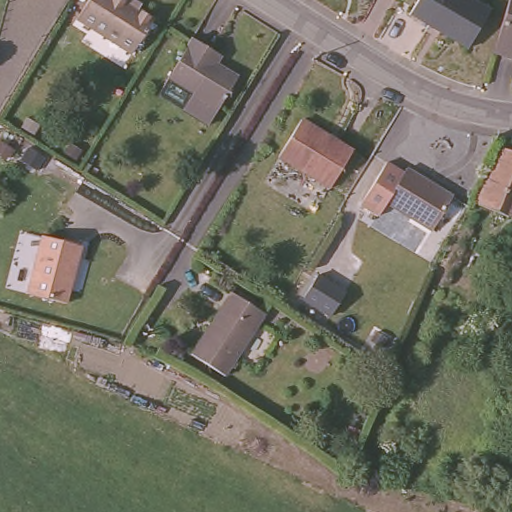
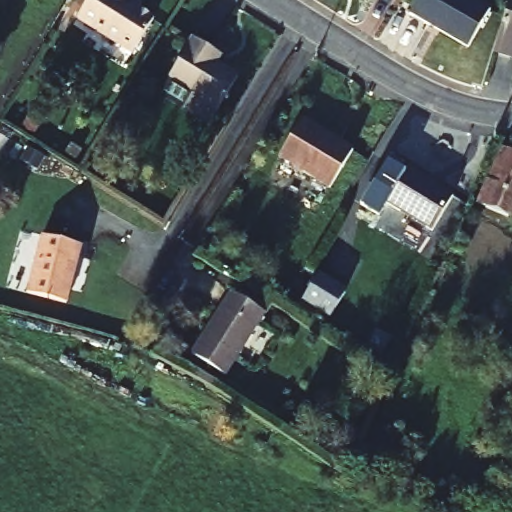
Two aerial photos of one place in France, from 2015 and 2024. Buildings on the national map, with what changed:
unchanged [(131,54),(77,17),(89,0),(123,0),(154,20),(131,54)]
unchanged [(417,0),(472,0),(490,10),(468,48),(409,14),(417,0)]
unchanged [(501,36),(512,2),(512,50),(498,45),(501,36)]
unchanged [(215,97),(204,115),(178,99),(189,82),(165,67),(188,29),(207,40),(202,47),(233,66),(215,97)]
unchanged [(324,192),(274,161),(297,124),(348,155),(324,192)]
unchanged [(508,155),(512,156),(512,219),(482,206),(508,155)]
unchanged [(432,229),(387,201),(379,214),(361,203),(387,160),(405,171),(408,166),(453,194),(432,229)]
unchanged [(22,292),(36,236),(76,245),(61,303),(22,292)]
unchanged [(226,374),(192,353),(231,292),(264,312),(226,374)]

